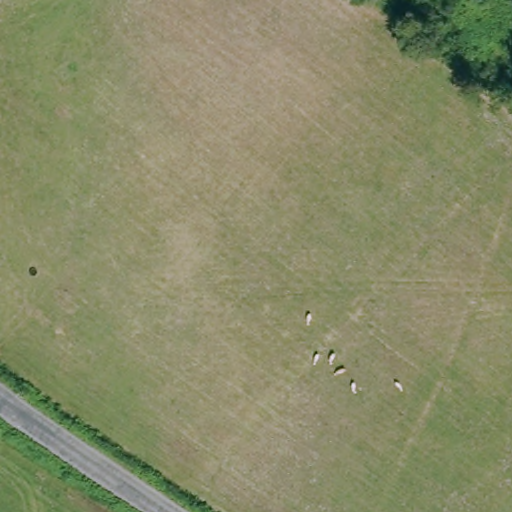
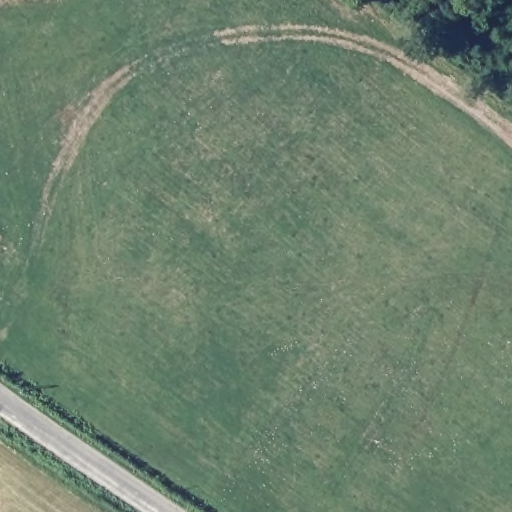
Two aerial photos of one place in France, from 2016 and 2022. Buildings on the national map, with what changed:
[]

